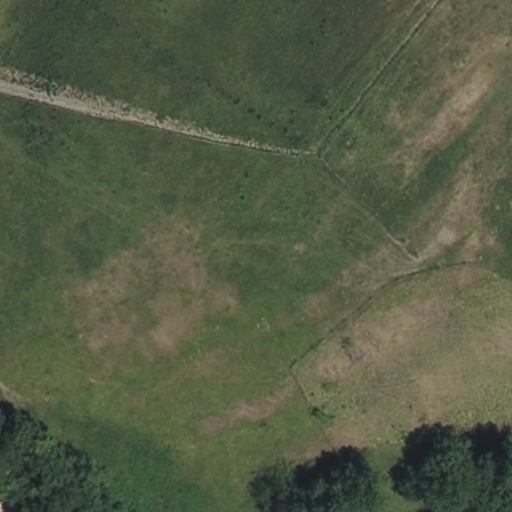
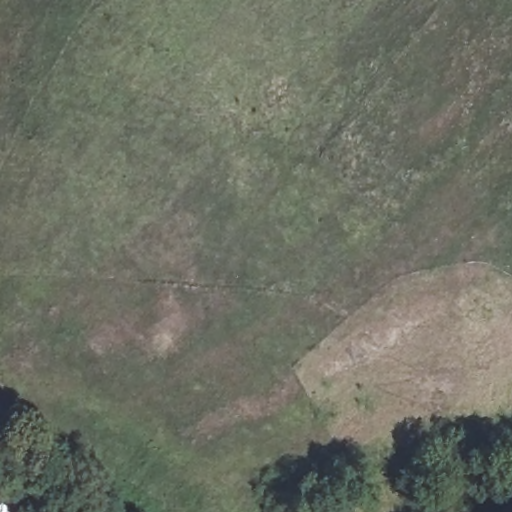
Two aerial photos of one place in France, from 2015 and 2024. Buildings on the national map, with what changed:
[]

